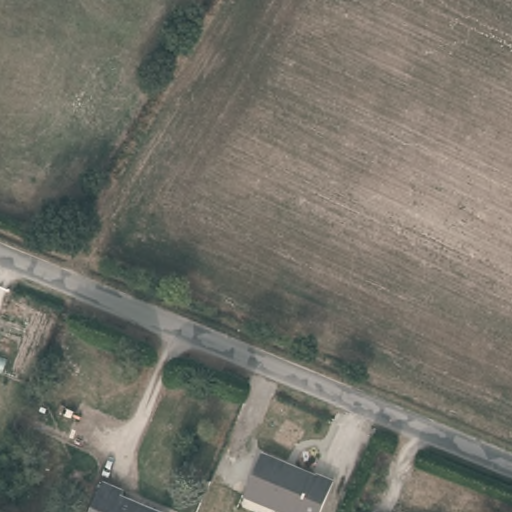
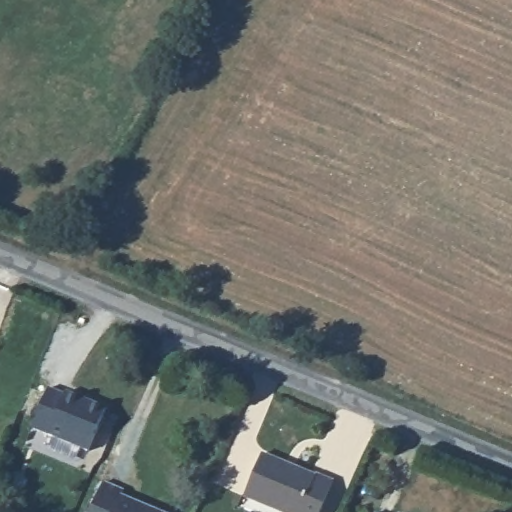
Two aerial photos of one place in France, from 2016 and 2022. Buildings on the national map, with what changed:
unchanged [(218,385),(211,383),(213,370),(223,375),(218,385)]
new [(88,450),(48,434),(32,428),(48,389),(63,395),(65,392),(106,408),(88,450)]
unchanged [(315,477),(316,476),(333,483),(322,512),(278,512),(244,498),(262,455),(315,477)]
unchanged [(119,496),(117,501),(143,512),(88,512),(98,487),(119,496)]

